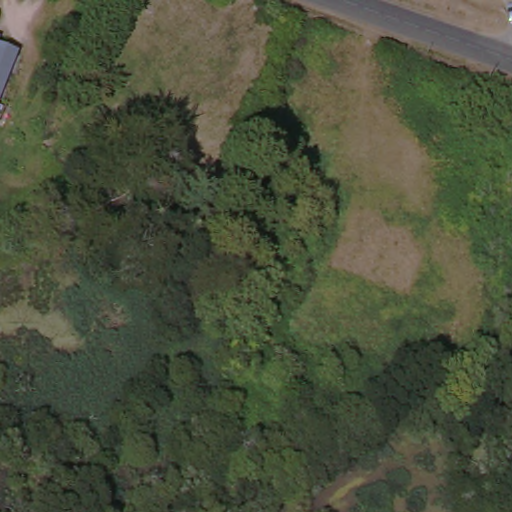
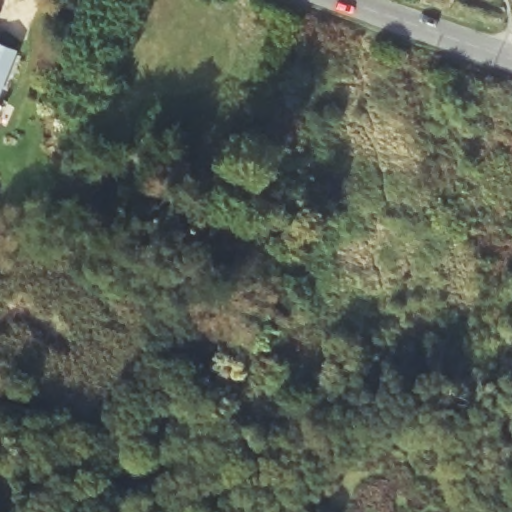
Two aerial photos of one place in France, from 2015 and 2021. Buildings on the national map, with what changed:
unchanged [(0,104),(0,48),(18,56),(0,104)]
unchanged [(246,167),(277,170),(275,194),(244,190),(246,167)]

